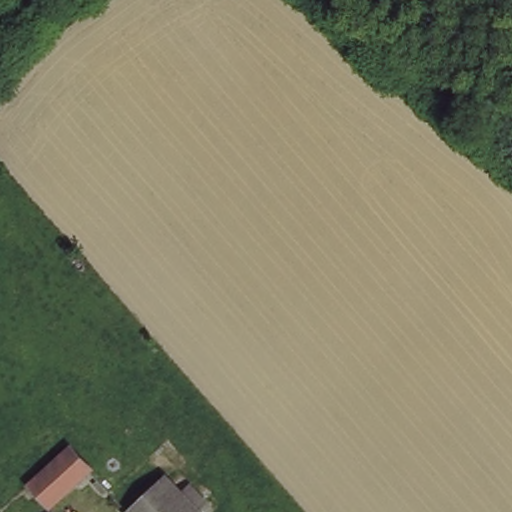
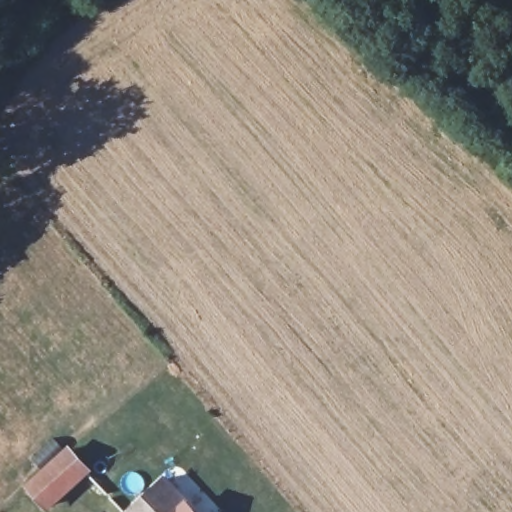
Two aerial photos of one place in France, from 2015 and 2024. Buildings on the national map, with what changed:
unchanged [(84,460),(43,512),(12,512),(9,510),(61,443),(84,460)]
unchanged [(194,512),(128,512),(126,510),(163,477),(194,512)]

